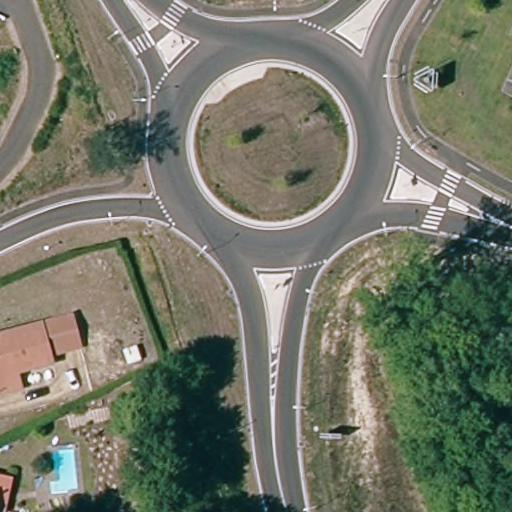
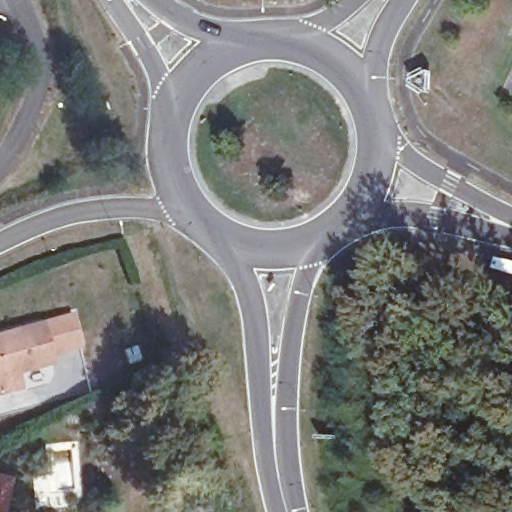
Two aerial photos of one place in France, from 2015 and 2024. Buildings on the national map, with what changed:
unchanged [(8,329),(57,316),(72,311),(80,342),(68,345),(50,350),(53,360),(17,369),(21,385),(0,391),(0,331),(8,329)]
unchanged [(11,479),(5,510),(0,509),(0,477),(11,479)]

